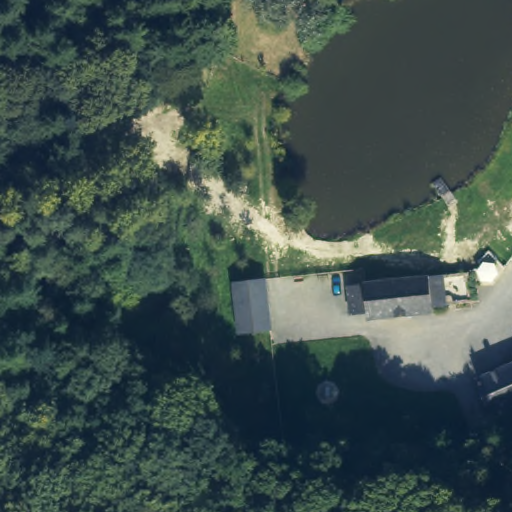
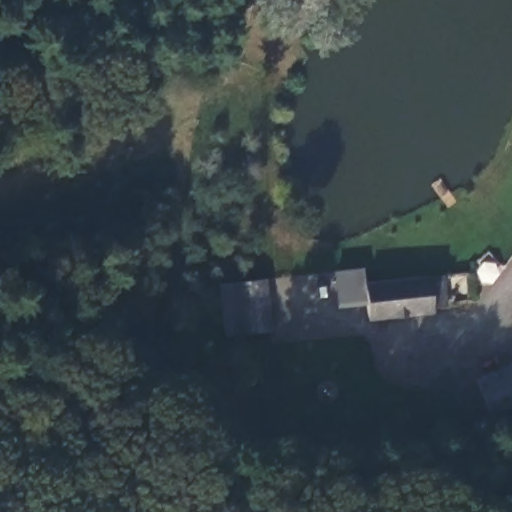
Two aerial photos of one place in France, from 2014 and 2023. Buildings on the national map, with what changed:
unchanged [(279,327),(249,330),(244,280),(274,277),(279,327)]
unchanged [(352,316),(349,288),(410,282),(428,280),(430,315),(411,317),(353,321),(352,316)]
unchanged [(512,365),(512,402),(487,410),(477,376),(512,365)]

